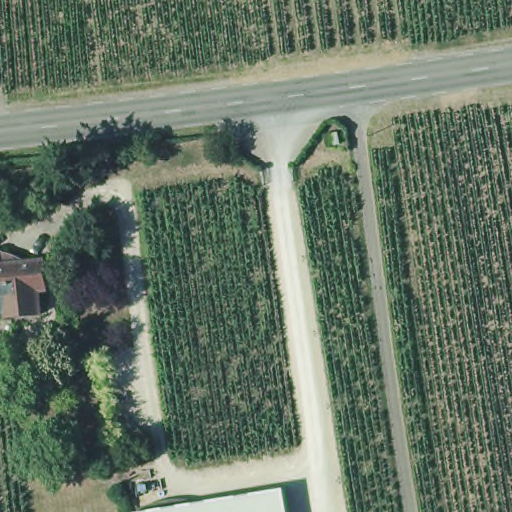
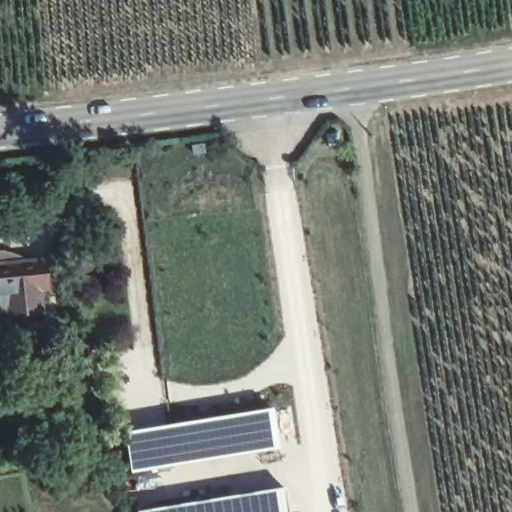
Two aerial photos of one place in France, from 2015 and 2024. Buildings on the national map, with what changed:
unchanged [(339,142),(327,146),(322,133),(335,130),(339,142)]
unchanged [(52,279),(43,279),(46,302),(11,305),(11,299),(0,300),(0,254),(50,249),(52,279)]
new [(268,412),(272,445),(130,471),(125,429),(268,412)]
unchanged [(289,481),(293,512),(264,512),(260,485),(289,481)]
unchanged [(260,485),(264,512),(166,512),(165,502),(260,485)]
unchanged [(165,502),(166,512),(144,512),(143,506),(165,502)]

